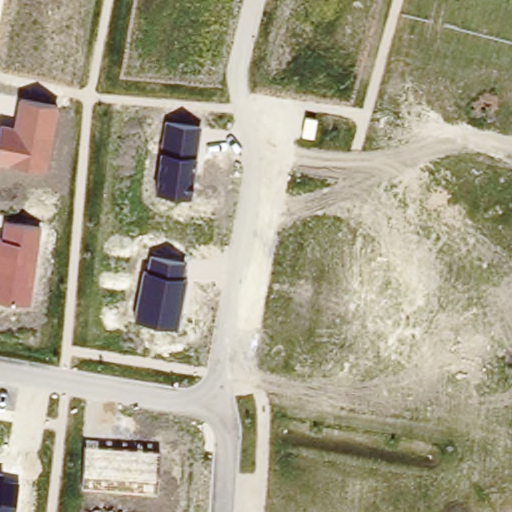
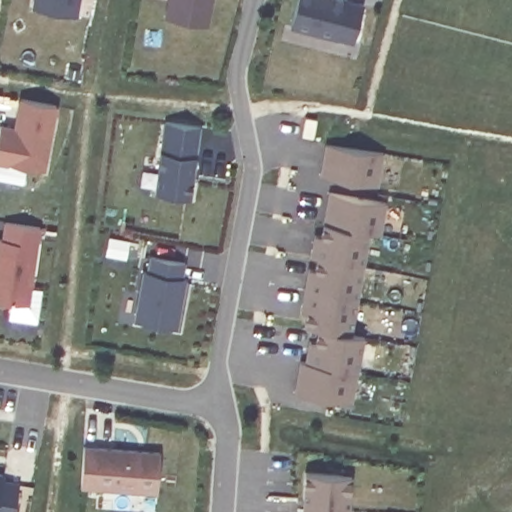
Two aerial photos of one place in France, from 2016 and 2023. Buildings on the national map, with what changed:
new [(31,0),(78,0),(75,15),(30,6),(31,0)]
new [(210,28),(168,20),(172,0),(215,0),(210,28)]
new [(295,0),(346,0),(362,3),(351,42),(287,25),(295,0)]
unchanged [(19,97),(57,103),(47,168),(0,162),(0,122),(15,124),(19,97)]
unchanged [(165,119),(200,125),(190,197),(155,191),(165,119)]
new [(324,142),(383,150),(377,186),(316,175),(324,142)]
new [(386,201),(380,233),(370,231),(350,332),(363,335),(357,372),(353,372),(350,401),(292,391),(298,359),(303,360),(307,340),(312,341),(313,327),(302,325),(303,312),(299,311),(307,267),(312,268),(314,256),(308,255),(312,233),(318,234),(320,221),(327,191),(386,201)]
unchanged [(5,219),(40,224),(30,303),(0,299),(0,236),(2,236),(5,219)]
unchanged [(142,267),(147,268),(150,254),(183,260),(180,275),(187,275),(187,276),(179,327),(134,318),(142,267)]
unchanged [(82,444),(160,449),(159,492),(80,487),(82,444)]
new [(351,512),(301,512),(304,471),(353,474),(351,512)]
unchanged [(14,512),(0,512),(0,474),(20,477),(14,512)]

